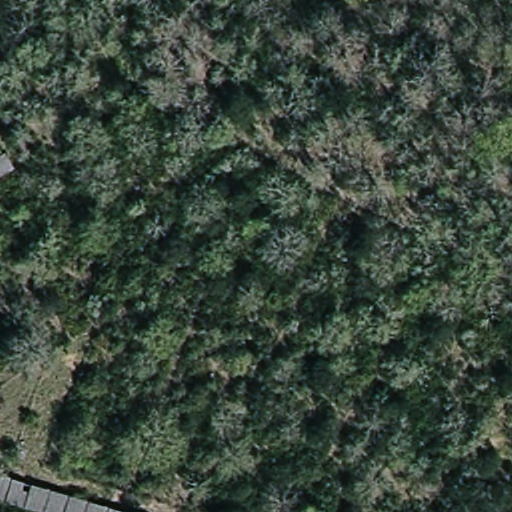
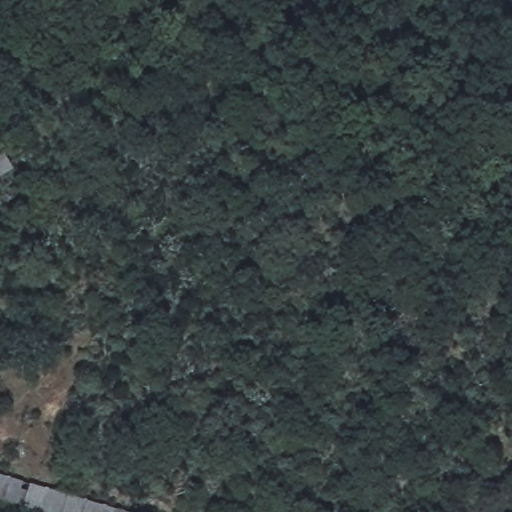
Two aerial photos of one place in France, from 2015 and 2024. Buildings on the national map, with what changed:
unchanged [(12,170),(0,177),(0,155),(2,153),(12,170)]
unchanged [(34,512),(0,503),(0,478),(121,512),(34,512)]

